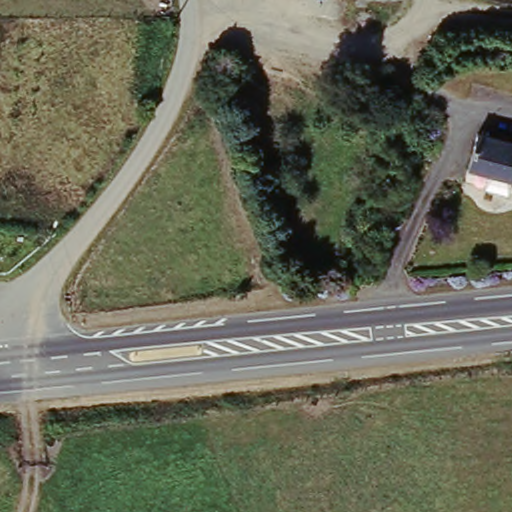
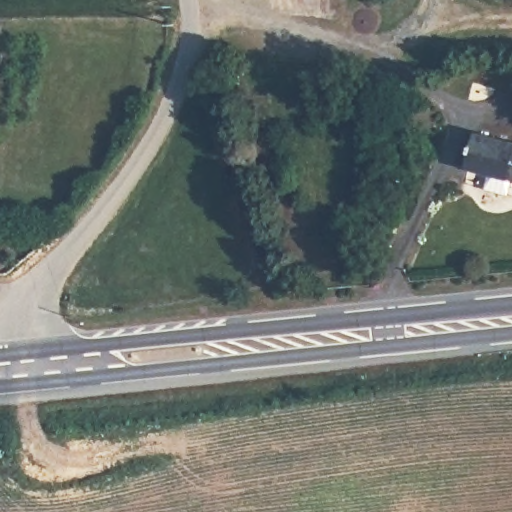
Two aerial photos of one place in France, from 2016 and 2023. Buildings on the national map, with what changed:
unchanged [(512,141),(512,179),(508,193),(486,187),(489,173),(469,167),(479,133),(512,141)]

